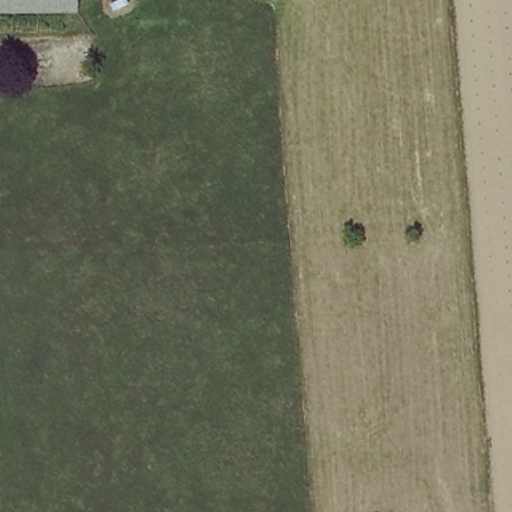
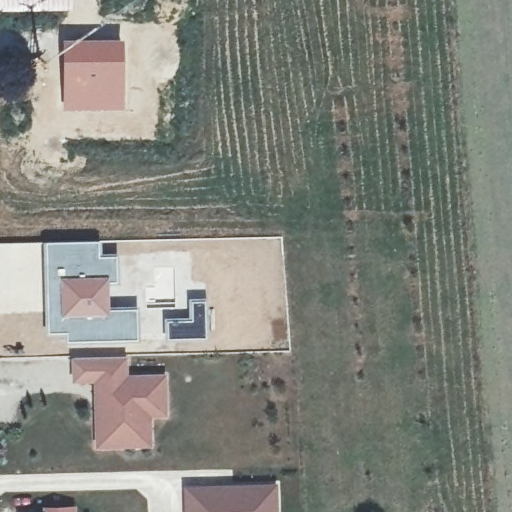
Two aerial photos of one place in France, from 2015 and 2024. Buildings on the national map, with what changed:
unchanged [(77,0),(77,13),(0,19),(0,0),(77,0)]
new [(75,37),(124,38),(125,110),(63,110),(61,41),(75,37)]
new [(102,240),(102,253),(118,253),(119,285),(111,285),(110,306),(139,305),(141,339),(66,342),(65,333),(45,334),(43,241),(102,240)]
new [(162,318),(187,317),(187,296),(207,295),(208,338),(182,338),(182,332),(162,334),(162,318)]
new [(72,358),(127,356),(128,374),(165,374),(165,415),(150,416),(151,446),(95,447),(93,383),(74,383),(72,358)]
new [(277,483),(278,512),(185,512),(184,486),(277,483)]
new [(75,512),(41,512),(42,507),(75,506),(75,512)]

